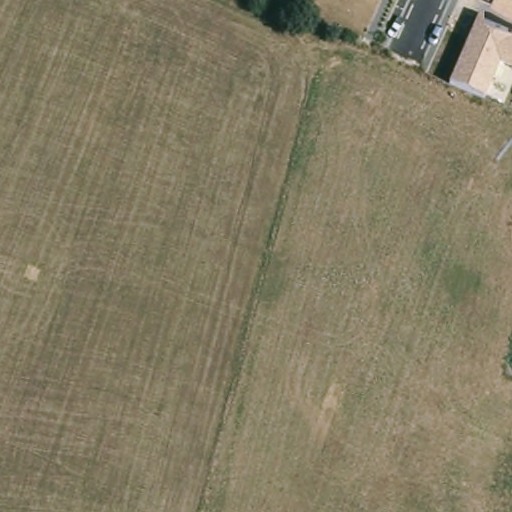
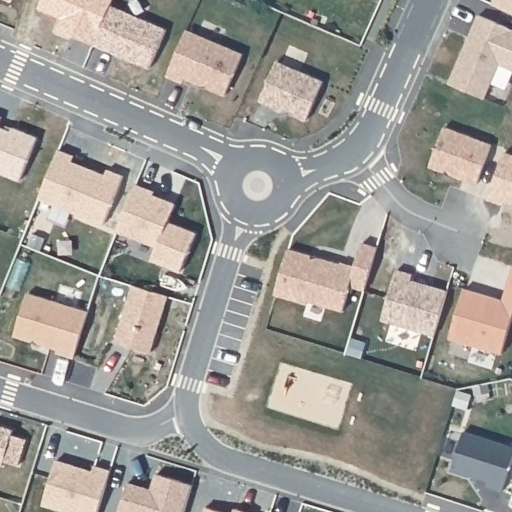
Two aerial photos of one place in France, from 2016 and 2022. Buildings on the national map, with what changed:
new [(9,1),(7,0),(9,0),(9,1)]
unchanged [(494,0),(512,0),(512,12),(493,4),(494,0)]
new [(94,46),(110,5),(167,29),(150,69),(94,46)]
unchanged [(488,99),(447,83),(478,13),(512,28),(512,71),(502,67),(488,99)]
new [(185,78),(182,83),(167,77),(187,30),(242,54),(225,96),(208,88),(202,86),(185,78)]
new [(260,101),(277,62),(324,82),(307,121),(292,115),(285,112),(260,101)]
new [(430,167),(444,127),(493,144),(478,185),(430,167)]
new [(59,150),(75,156),(72,162),(108,176),(91,219),(40,199),(59,150)]
new [(137,185),(155,192),(154,195),(176,204),(169,222),(196,234),(181,272),(152,261),(157,247),(118,232),(137,185)]
new [(289,249),(342,265),(342,263),(356,267),(362,243),(378,247),(365,291),(351,287),(343,312),(308,301),(307,305),(276,295),(289,249)]
new [(397,270),(413,275),(411,281),(448,292),(435,336),(382,321),(397,270)]
new [(133,286),(168,296),(151,353),(116,342),(133,286)]
new [(15,337),(28,294),(89,313),(75,359),(58,354),(59,350),(40,344),(32,342),(15,337)]
new [(14,431),(12,436),(27,440),(19,466),(4,461),(2,466),(0,465),(0,426),(14,431)]
new [(512,448),(512,463),(502,492),(487,487),(488,482),(471,476),(470,478),(452,471),(464,432),(512,448)]
new [(94,472),(96,466),(112,471),(99,512),(66,512),(44,505),(57,461),(94,472)]
new [(152,490),(157,475),(193,486),(185,512),(120,512),(129,483),(145,488),(152,490)]

